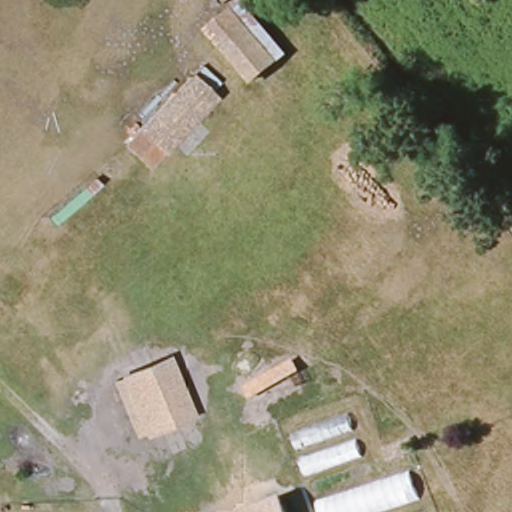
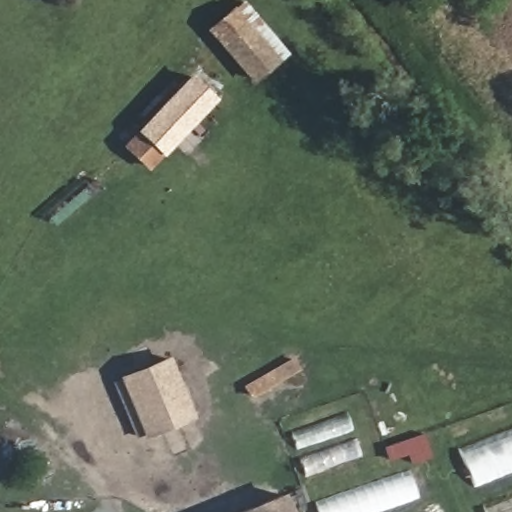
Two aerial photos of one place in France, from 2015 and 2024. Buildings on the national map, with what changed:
unchanged [(238,1),(284,55),(248,84),(204,30),(238,1)]
unchanged [(215,85),(207,95),(213,104),(144,172),(117,145),(197,68),(215,85)]
unchanged [(198,414),(149,444),(110,382),(160,347),(198,414)]
new [(512,428),(512,469),(472,486),(457,449),(512,428)]
unchanged [(285,487),(297,512),(222,512),(285,487)]
new [(512,495),(512,512),(485,512),(483,506),(512,495)]

